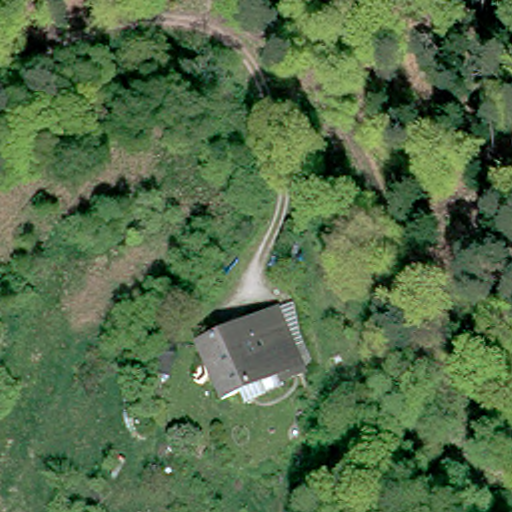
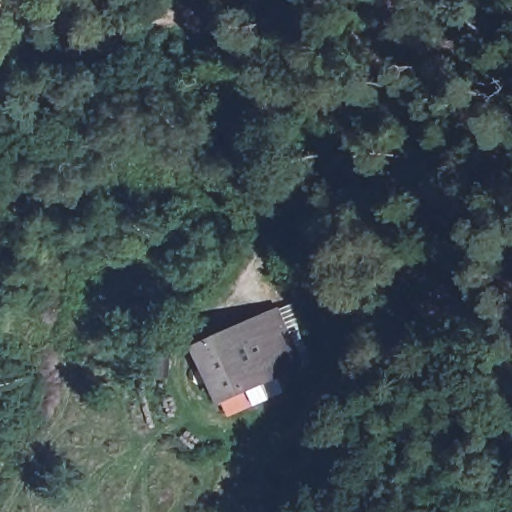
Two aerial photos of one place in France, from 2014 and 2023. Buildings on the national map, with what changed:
unchanged [(205,357),(215,352),(207,331),(249,313),(257,334),(272,328),(291,375),(260,389),(264,401),(248,408),(243,397),(224,405),(205,357)]

